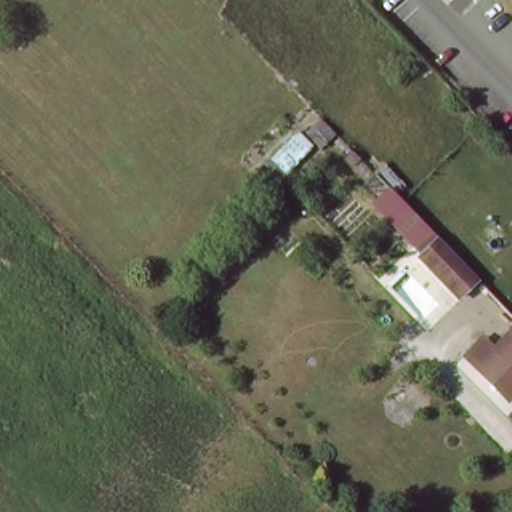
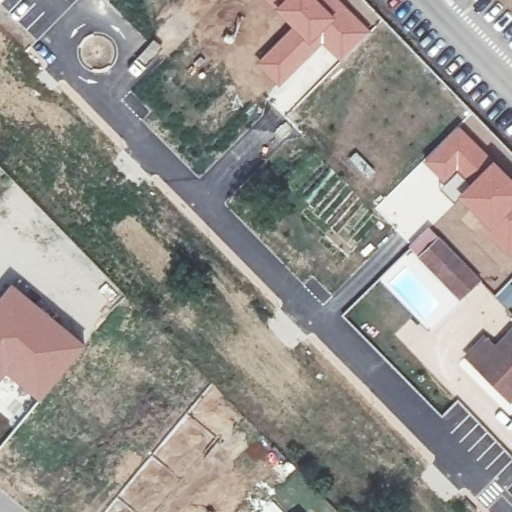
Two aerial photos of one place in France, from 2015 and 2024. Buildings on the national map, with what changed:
new [(291,25),(267,0),(340,0),(371,31),(339,61),(322,44),(279,86),(256,64),(291,25)]
new [(461,124),(494,158),(457,197),(453,202),(439,188),(443,183),(422,161),(461,124)]
unchanged [(265,163),(296,128),(313,143),(279,174),(265,163)]
new [(494,158),(512,176),(512,254),(509,257),(480,228),(484,224),(457,197),(494,158)]
unchanged [(419,257),(391,224),(403,213),(384,196),(393,188),(439,235),(481,278),(459,296),(419,257)]
new [(88,346),(41,401),(6,373),(0,380),(0,296),(12,281),(88,346)]
unchanged [(510,399),(479,368),(467,356),(486,336),(498,349),(512,334),(512,397),(510,399)]

